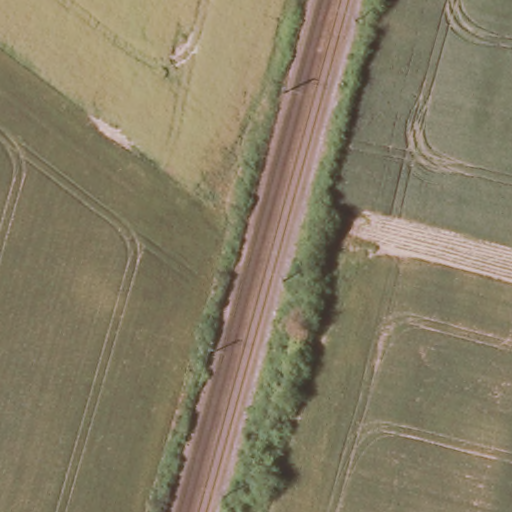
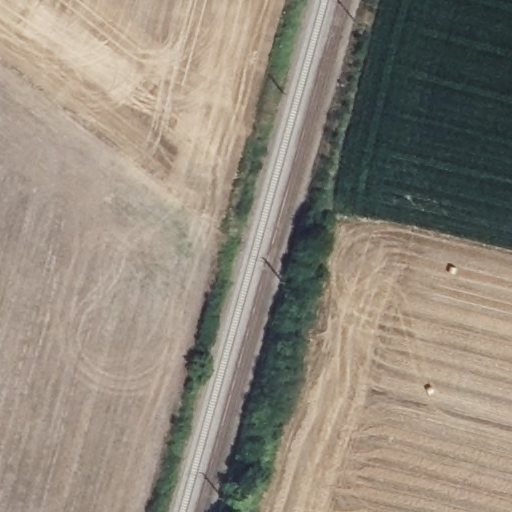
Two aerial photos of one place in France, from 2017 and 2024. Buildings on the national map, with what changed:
[]

